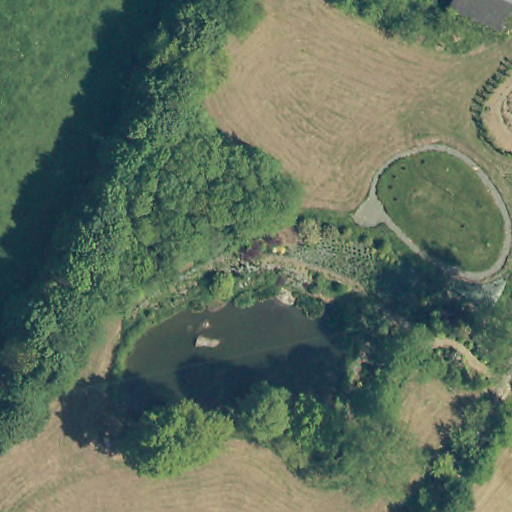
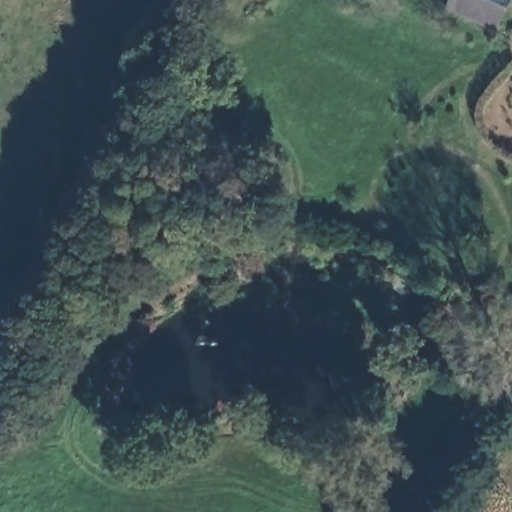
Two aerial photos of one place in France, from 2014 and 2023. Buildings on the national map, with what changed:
unchanged [(463,10),(452,5),(454,0),(512,0),(501,29),(463,10)]

